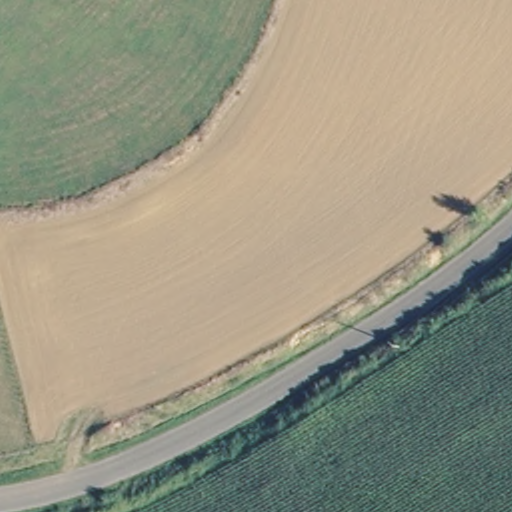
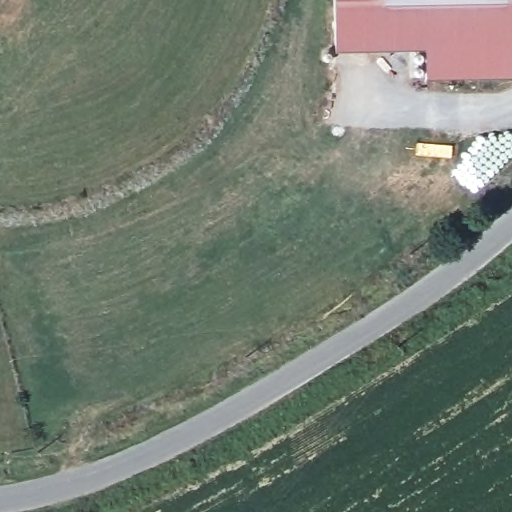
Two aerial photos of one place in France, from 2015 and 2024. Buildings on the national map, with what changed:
new [(336,51),(335,0),(512,0),(512,78),(427,79),(424,50),(336,51)]

